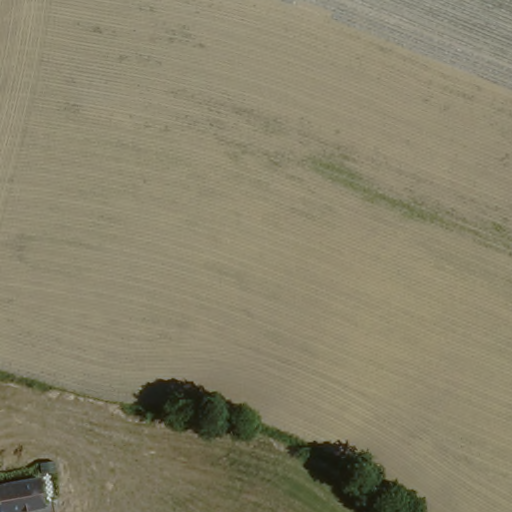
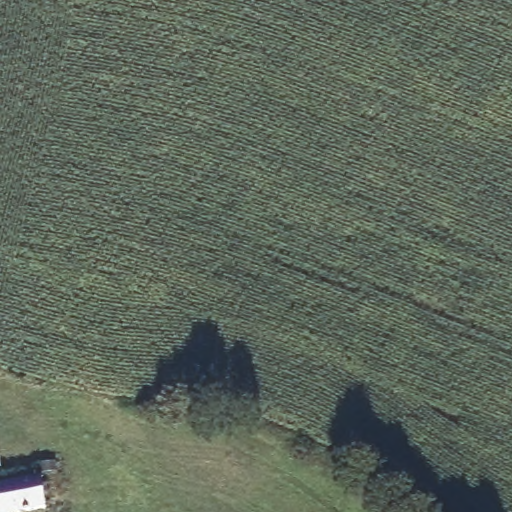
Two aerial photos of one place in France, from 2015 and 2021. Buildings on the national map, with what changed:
unchanged [(0,506),(0,481),(43,472),(49,501),(1,511),(0,506)]

